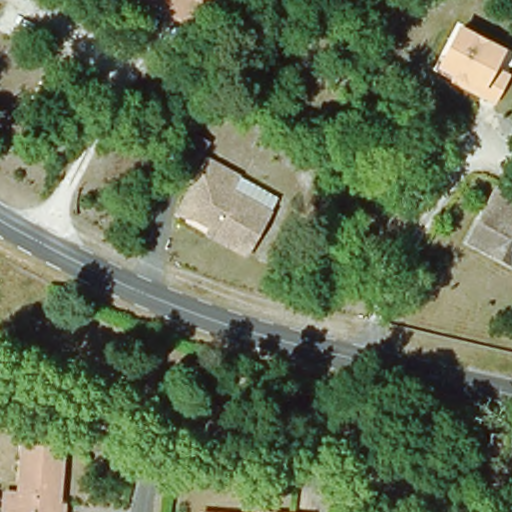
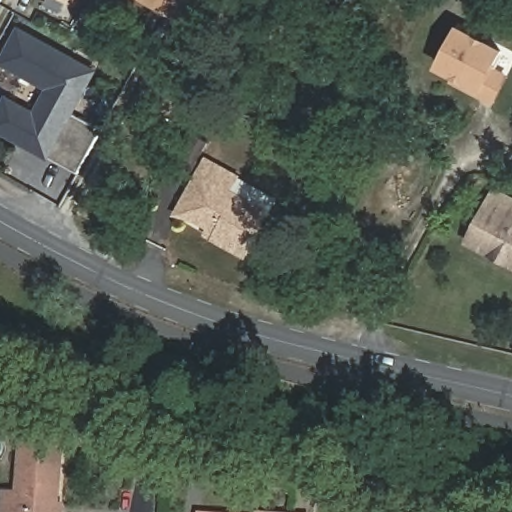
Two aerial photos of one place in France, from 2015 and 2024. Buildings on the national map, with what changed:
new [(69,0),(72,0),(71,1),(69,0)]
unchanged [(153,0),(152,0),(205,0),(192,23),(153,0)]
unchanged [(494,105),(450,82),(452,77),(436,68),(459,25),(506,50),(495,70),(512,75),(494,105)]
new [(0,134),(0,108),(6,95),(35,112),(48,89),(0,63),(0,62),(19,26),(98,70),(75,113),(103,130),(78,171),(50,155),(48,159),(0,134)]
new [(192,135),(207,144),(192,170),(178,161),(192,135)]
unchanged [(209,230),(196,222),(175,216),(197,175),(205,161),(237,179),(229,192),(269,214),(245,257),(213,241),(205,236),(209,230)]
unchanged [(512,264),(467,239),(494,188),(512,198),(512,264)]
unchanged [(17,497),(22,434),(46,435),(57,436),(56,451),(62,451),(57,508),(61,509),(61,512),(2,512),(3,496),(17,497)]

